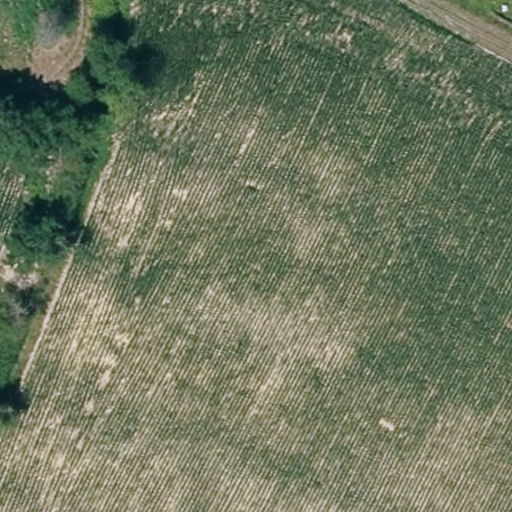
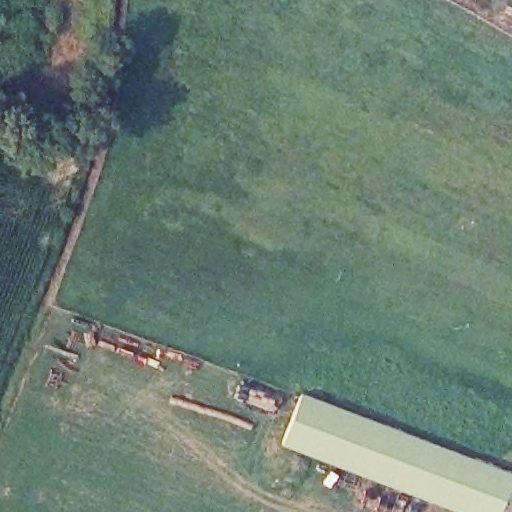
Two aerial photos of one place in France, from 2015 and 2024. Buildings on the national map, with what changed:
new [(512,474),(512,493),(507,492),(500,512),(455,512),(280,446),(300,393),(512,474)]

